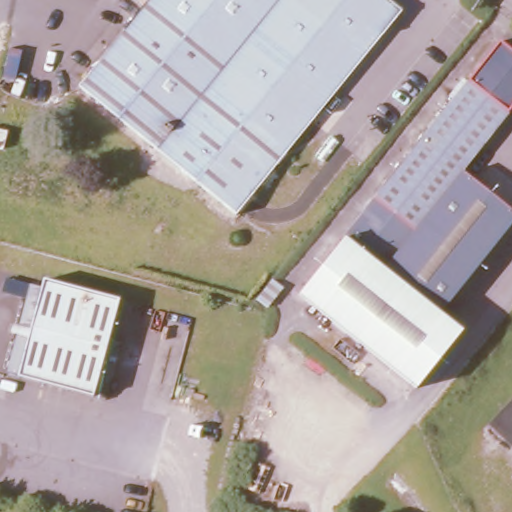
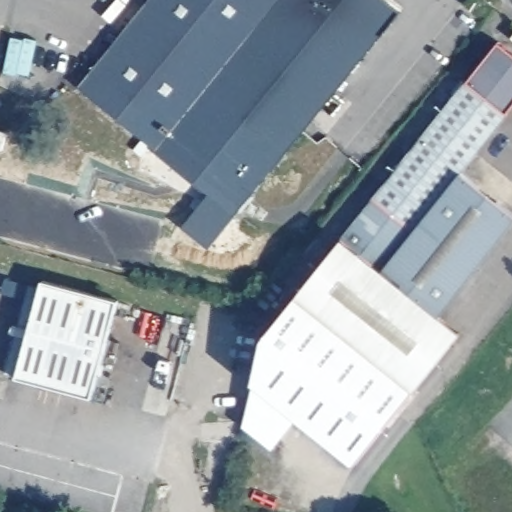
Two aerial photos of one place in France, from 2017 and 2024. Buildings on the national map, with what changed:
unchanged [(400,6),(247,187),(234,205),(197,175),(80,79),(144,0),(392,0),(400,6)]
unchanged [(496,43),(512,57),(512,107),(458,174),(512,218),(512,222),(440,312),(435,318),(339,241),(342,237),(370,203),(496,43)]
unchanged [(10,147),(0,145),(0,129),(14,133),(10,147)]
unchanged [(339,241),(435,318),(440,312),(444,315),(465,330),(416,390),(297,294),(339,241)]
unchanged [(259,293),(271,277),(278,283),(264,300),(259,293)]
unchanged [(22,380),(23,377),(46,293),(49,283),(121,302),(96,400),(22,380)]
unchanged [(23,377),(11,374),(35,289),(46,293),(23,377)]
new [(356,464),(297,416),(274,448),(242,426),(254,383),(264,336),(297,294),(415,389),(356,464)]

